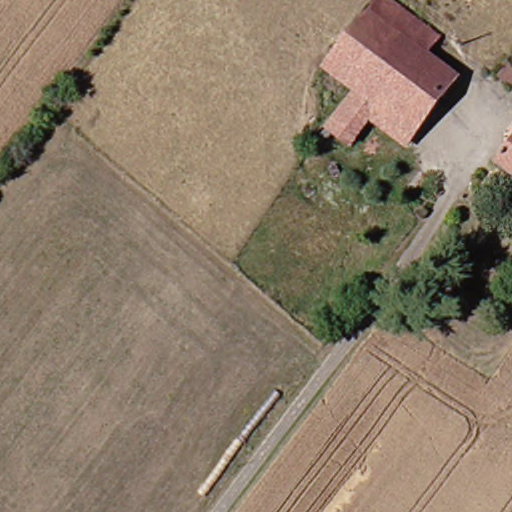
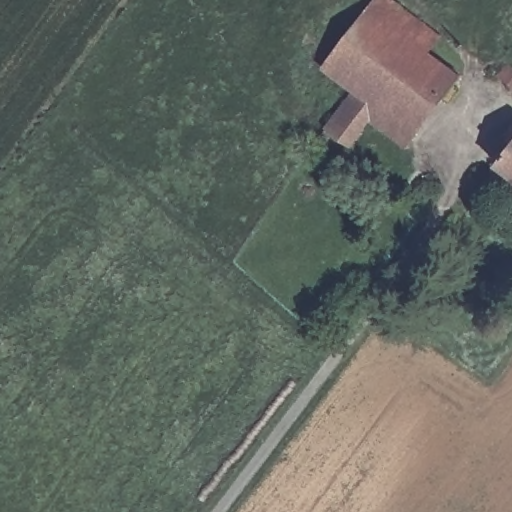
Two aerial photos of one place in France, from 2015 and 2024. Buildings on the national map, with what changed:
unchanged [(362,7),(368,0),(382,0),(432,38),(421,53),(362,7)]
unchanged [(457,80),(451,89),(457,95),(449,107),(442,102),(422,85),(391,127),(369,109),(337,146),(324,134),(352,97),(315,70),(362,7),(421,53),(457,80)]
unchanged [(512,64),(512,82),(504,74),(512,64)]
unchanged [(402,153),(367,126),(344,152),(337,146),(369,109),(391,127),(422,85),(442,102),(402,153)]
unchanged [(512,140),(512,182),(493,167),(512,140)]

